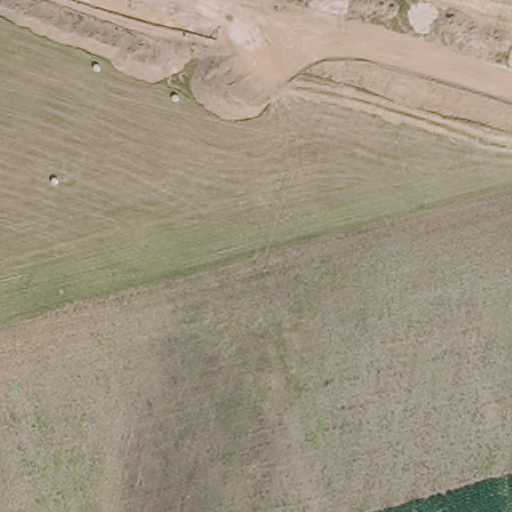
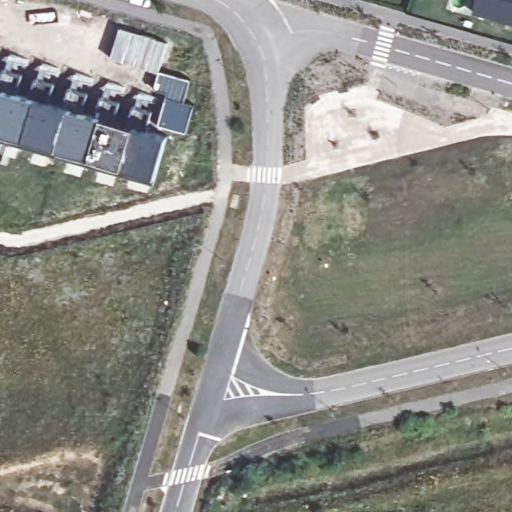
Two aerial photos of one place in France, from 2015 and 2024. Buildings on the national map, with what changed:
new [(512,23),(472,11),(475,0),(512,0),(512,23)]
new [(5,67),(23,72),(15,95),(29,98),(37,75),(54,80),(47,100),(62,105),(69,86),(86,92),(80,110),(93,115),(101,93),(120,100),(112,120),(125,124),(132,105),(151,111),(145,127),(168,134),(154,179),(0,135),(0,82),(5,67)]
new [(185,101),(195,104),(186,134),(158,125),(167,92),(154,89),(160,70),(190,80),(185,101)]

